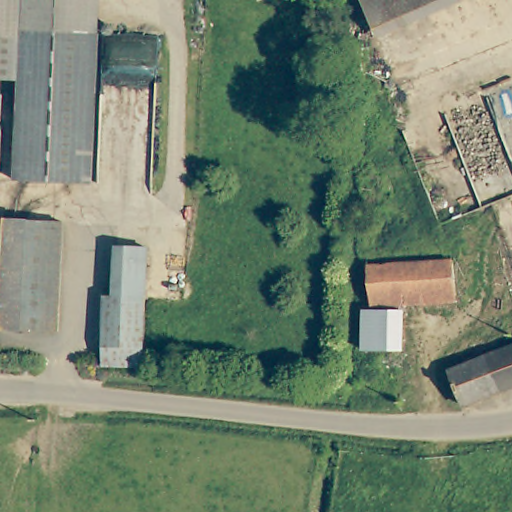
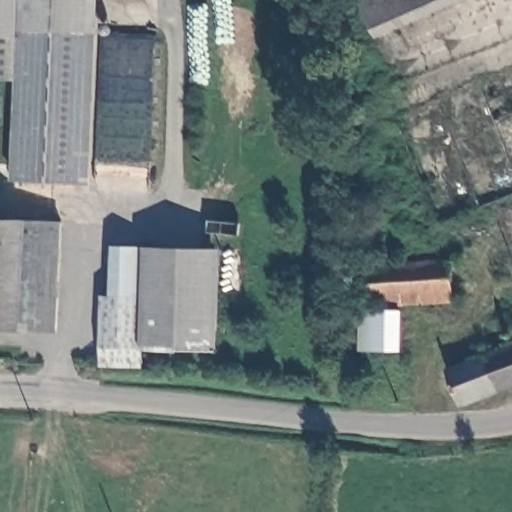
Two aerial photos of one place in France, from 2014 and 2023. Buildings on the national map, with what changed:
unchanged [(0,80),(0,0),(26,0),(22,80),(0,80)]
unchanged [(26,0),(86,0),(77,182),(17,180),(22,80),(26,0)]
unchanged [(368,0),(450,0),(381,30),(368,0)]
unchanged [(55,331),(0,329),(0,216),(60,219),(55,331)]
new [(221,351),(146,349),(147,303),(148,250),(147,245),(223,247),(221,351)]
unchanged [(118,250),(148,250),(147,303),(116,302),(118,250)]
unchanged [(373,302),(371,265),(455,259),(457,295),(373,302)]
unchanged [(147,303),(145,365),(106,364),(108,302),(116,302),(147,303)]
unchanged [(403,316),(397,355),(360,348),(367,310),(403,316)]
unchanged [(451,365),(512,344),(512,383),(464,400),(451,365)]

